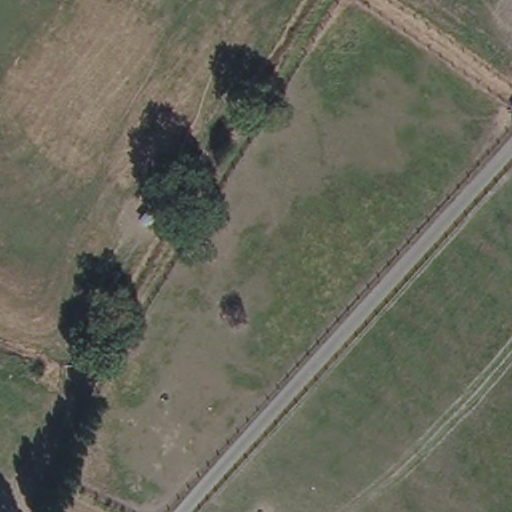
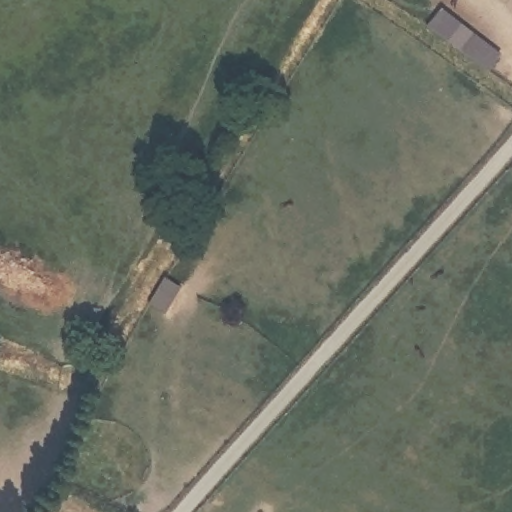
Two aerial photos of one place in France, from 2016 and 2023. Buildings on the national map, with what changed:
new [(444,7),(504,54),(490,72),(429,27),(444,7)]

